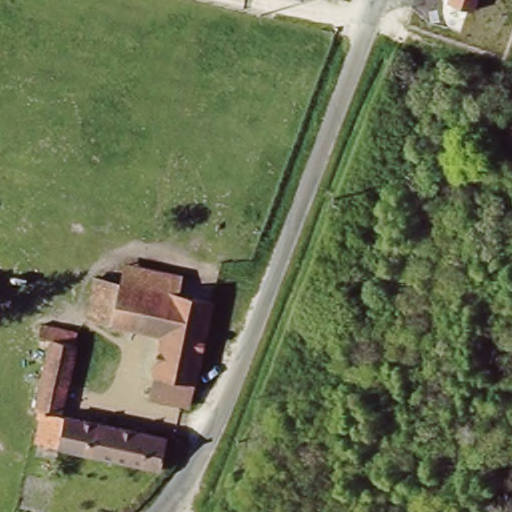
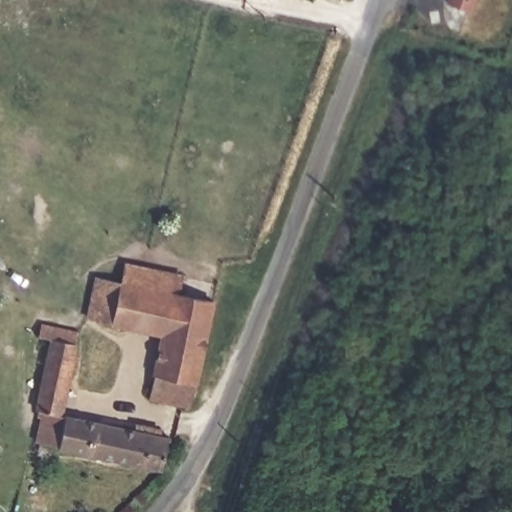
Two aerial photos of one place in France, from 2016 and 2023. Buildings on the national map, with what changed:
unchanged [(476,0),(473,11),(447,2),(447,0),(476,0)]
unchanged [(195,404),(153,398),(163,336),(105,323),(113,270),(133,274),(136,261),(174,269),(172,282),(216,291),(195,404)]
unchanged [(37,442),(48,407),(18,402),(39,317),(80,328),(63,411),(167,433),(161,467),(37,442)]

